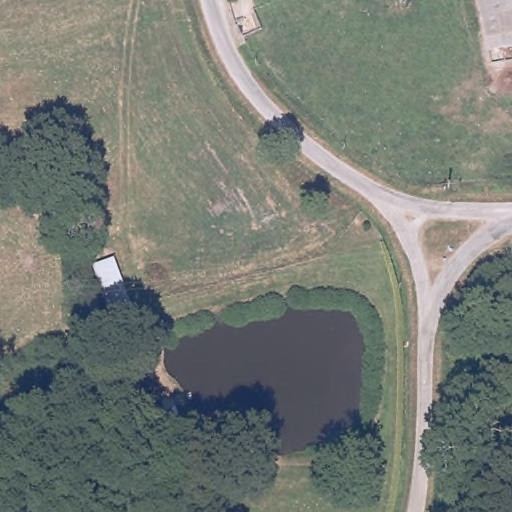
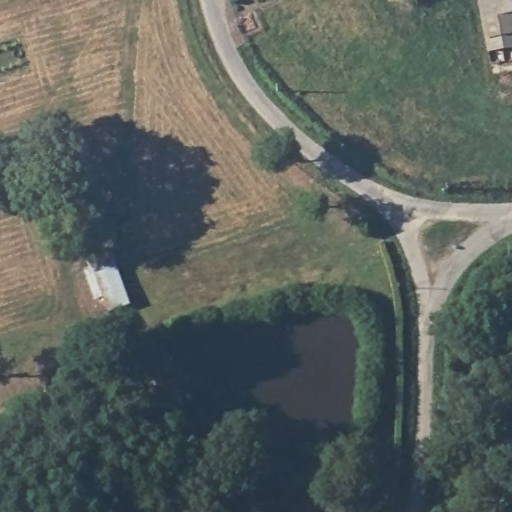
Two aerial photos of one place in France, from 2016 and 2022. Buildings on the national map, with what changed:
unchanged [(481,0),(512,0),(512,47),(491,50),(481,0)]

